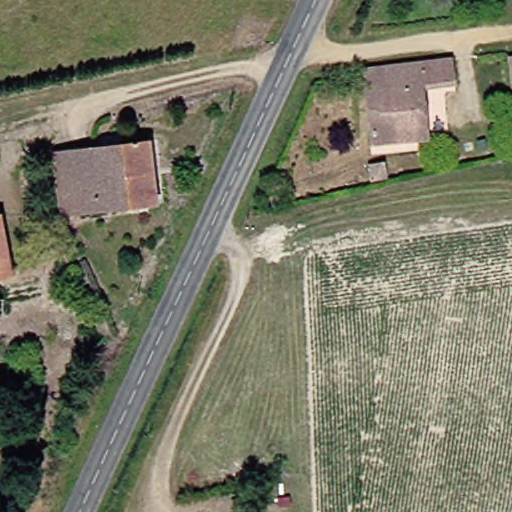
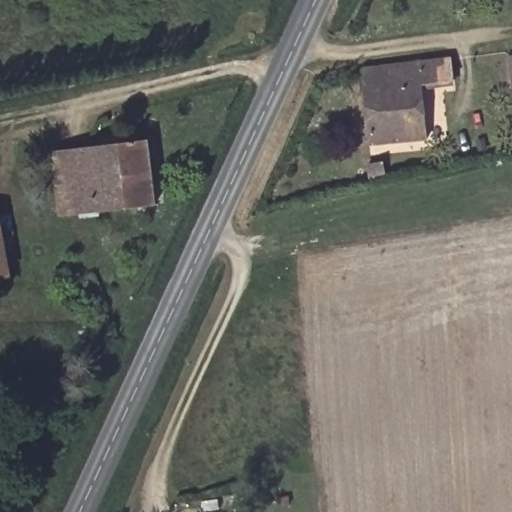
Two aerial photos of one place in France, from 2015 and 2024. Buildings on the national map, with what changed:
unchanged [(367,67),(426,58),(461,52),(463,72),(428,78),(436,128),(377,136),(367,67)]
unchanged [(62,212),(60,200),(66,200),(57,154),(152,137),(162,199),(69,216),(67,210),(62,212)]
unchanged [(0,213),(5,212),(17,267),(0,271),(0,213)]

